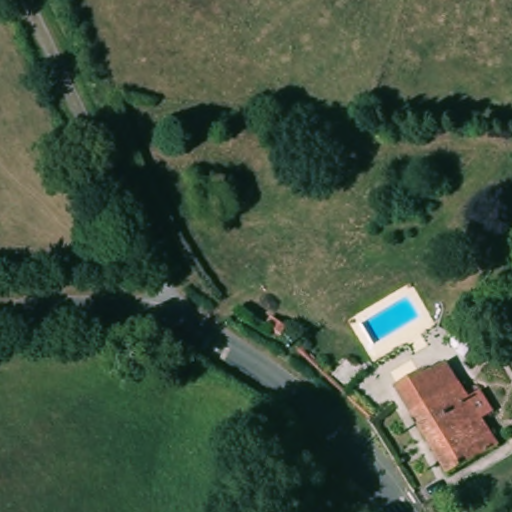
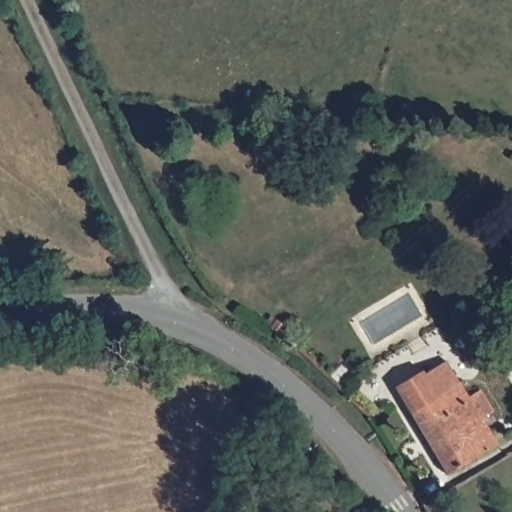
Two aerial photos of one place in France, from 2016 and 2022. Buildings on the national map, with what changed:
unchanged [(395,385),(422,370),(424,372),(446,360),(458,380),(460,379),(469,395),(481,388),(493,411),(482,418),(497,443),(447,473),(411,411),(400,393),(395,385)]

